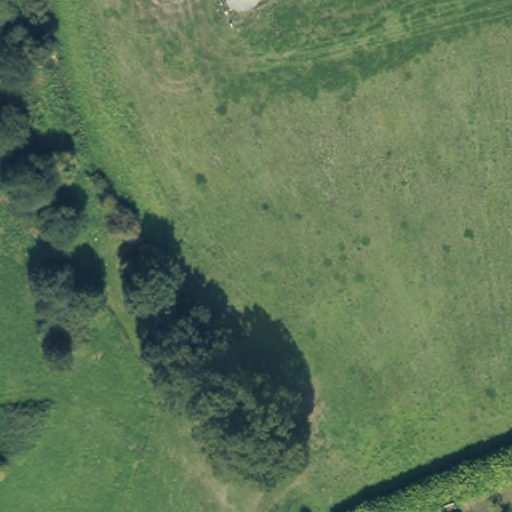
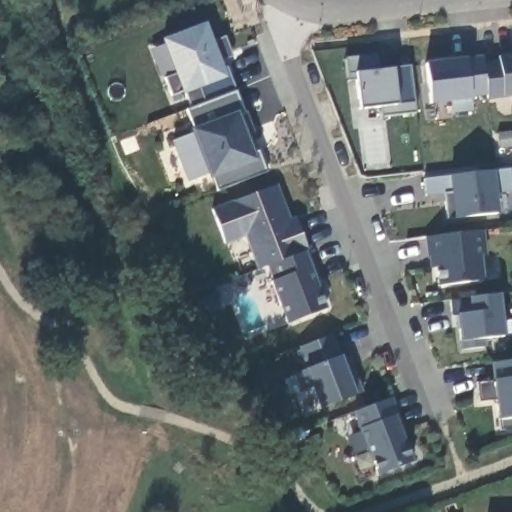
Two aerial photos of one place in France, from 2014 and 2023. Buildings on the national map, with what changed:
new [(192,109),(186,92),(182,94),(172,97),(165,78),(175,74),(162,39),(206,22),(213,41),(226,36),(234,56),(219,61),(222,68),(227,66),(235,92),(192,109)]
new [(381,117),(381,107),(361,109),(357,81),(348,81),(345,59),(377,54),(383,70),(394,68),(410,66),(416,113),(381,117)]
new [(489,100),(488,95),(471,98),(472,111),(451,114),(451,102),(432,104),(427,62),(465,58),(482,56),(482,62),(498,61),(499,55),(512,54),(512,97),(489,100)]
new [(244,114),(247,113),(255,133),(252,134),(267,173),(219,190),(216,177),(210,179),(208,176),(188,182),(171,141),(192,134),(191,130),(196,128),(188,111),(235,92),(244,114)]
new [(512,186),(512,192),(496,194),(498,214),(455,218),(448,219),(446,194),(427,195),(424,179),(449,176),(493,171),(510,169),(512,186)]
new [(226,245),(212,209),(232,201),(278,184),(291,218),(295,217),(309,251),(306,252),(328,310),(288,324),(272,281),(274,279),(269,267),(258,270),(246,237),(226,245)]
new [(438,286),(435,266),(430,267),(427,238),(485,232),(487,255),(482,256),(485,281),(438,286)]
new [(505,336),(486,340),(487,347),(460,350),(459,342),(460,340),(456,314),(452,315),(449,301),(469,298),(500,295),(505,336)]
new [(343,359),(349,357),(364,393),(318,408),(311,388),(304,391),(296,373),(304,370),(308,366),(299,347),(333,334),(343,359)]
new [(501,430),(500,421),(498,419),(494,400),(480,401),(478,383),(493,382),(491,363),(512,361),(512,429),(501,430)]
new [(378,475),(353,412),(393,397),(405,430),(402,432),(414,461),(378,475)]

